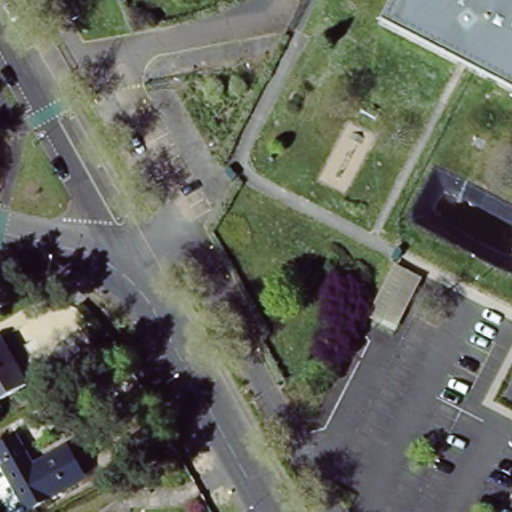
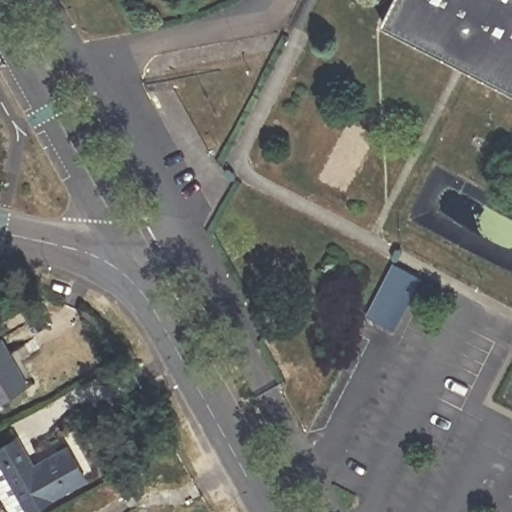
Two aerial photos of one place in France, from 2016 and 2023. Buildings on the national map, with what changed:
unchanged [(392,20),(402,0),(512,0),(512,82),(392,20)]
unchanged [(392,335),(366,322),(393,266),(421,284),(392,335)]
unchanged [(0,396),(0,354),(18,387),(0,396)]
unchanged [(34,465),(70,446),(87,478),(29,509),(4,463),(0,465),(0,445),(18,436),(34,465)]

